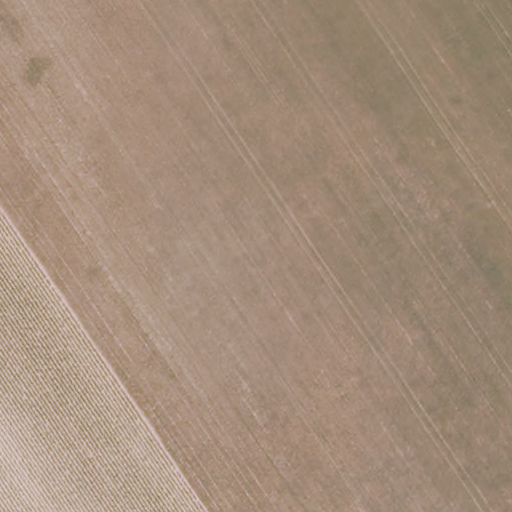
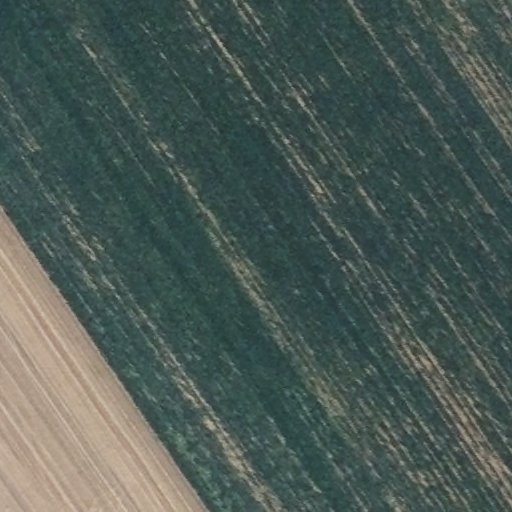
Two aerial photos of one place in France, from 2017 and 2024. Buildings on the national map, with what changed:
[]

